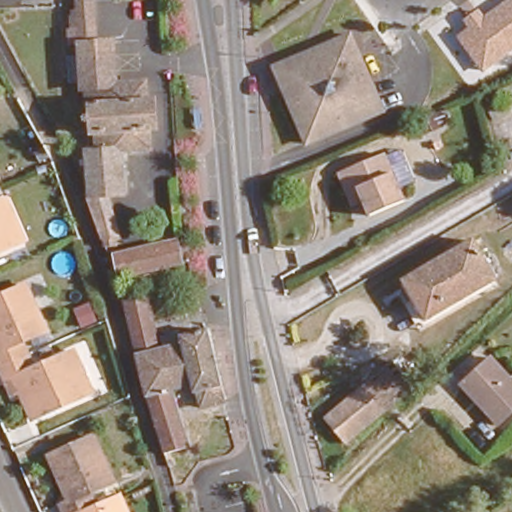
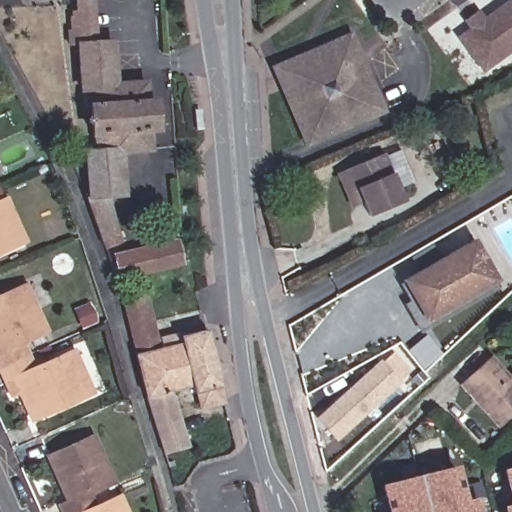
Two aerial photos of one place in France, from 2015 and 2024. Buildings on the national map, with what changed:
unchanged [(75,144),(86,144),(78,0),(100,0),(100,34),(111,35),(113,81),(141,80),(143,95),(153,95),(156,126),(145,126),(145,143),(116,144),(119,193),(110,193),(110,197),(78,200),(75,144)]
unchanged [(457,36),(468,29),(462,20),(478,10),(483,17),(509,0),(512,0),(512,54),(483,74),(457,36)]
unchanged [(351,32),(387,115),(306,150),(270,67),(351,32)]
unchanged [(330,173),(340,169),(385,153),(404,207),(368,224),(363,210),(345,216),(330,173)]
unchanged [(110,197),(117,241),(91,246),(78,200),(110,197)]
unchanged [(14,250),(0,257),(0,218),(14,250)]
unchanged [(470,238),(495,280),(427,320),(403,280),(470,238)]
unchanged [(120,274),(117,257),(185,242),(189,259),(147,268),(120,274)]
unchanged [(120,274),(147,268),(151,286),(146,287),(160,339),(177,335),(175,327),(203,320),(220,393),(196,397),(191,377),(170,382),(184,439),(172,442),(175,454),(154,458),(106,293),(115,291),(111,276),(120,274)]
unchanged [(5,349),(0,338),(0,297),(27,283),(36,303),(47,332),(27,340),(35,358),(0,374),(0,352),(5,349)]
unchanged [(512,388),(512,411),(493,426),(455,384),(486,356),(512,388)]
unchanged [(35,358),(39,366),(59,358),(74,391),(80,407),(40,426),(26,395),(17,377),(4,382),(0,375),(0,374),(35,358)]
unchanged [(392,363),(411,385),(343,447),(323,424),(392,363)]
unchanged [(71,503),(63,488),(51,462),(94,442),(114,484),(115,486),(95,494),(104,511),(101,512),(56,512),(56,511),(71,503)]
new [(482,494),(486,512),(448,512),(446,503),(428,508),(429,512),(398,512),(390,478),(463,461),(470,496),(482,494)]
unchanged [(120,503),(122,502),(126,512),(101,512),(104,511),(120,503)]

